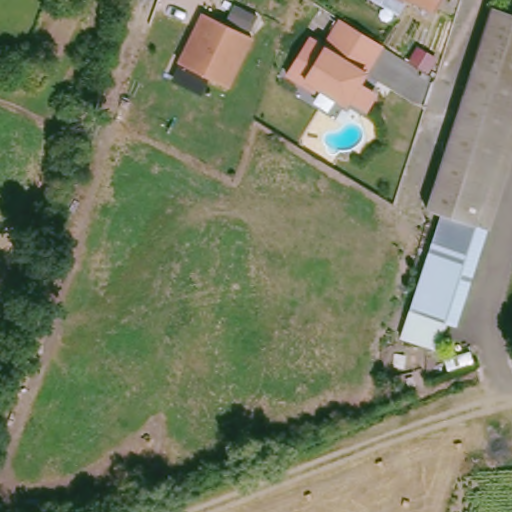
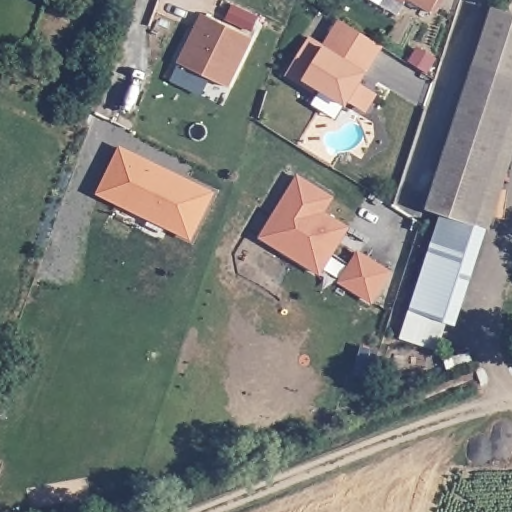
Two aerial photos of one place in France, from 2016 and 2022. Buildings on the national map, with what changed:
unchanged [(401,4),(396,0),(404,0),(401,4)]
unchanged [(426,17),(404,0),(440,0),(426,17)]
unchanged [(452,215),(438,209),(437,208),(449,170),(502,8),(512,11),(512,144),(486,225),(455,321),(421,309),(452,215)]
unchanged [(190,45),(197,43),(202,33),(197,31),(205,15),(254,39),(230,89),(181,65),(190,45)]
unchanged [(309,38),(327,48),(329,45),(327,39),(339,19),(372,38),(382,43),(366,71),(362,69),(356,79),(374,89),(376,95),(370,105),(364,107),(350,99),(348,103),(307,80),(305,85),(289,76),(309,38)]
new [(97,194),(120,146),(215,192),(191,240),(97,194)]
new [(259,238),(298,175),(334,197),(326,212),(350,227),(321,274),(259,238)]
new [(339,281),(357,251),(392,271),(372,303),(339,281)]

